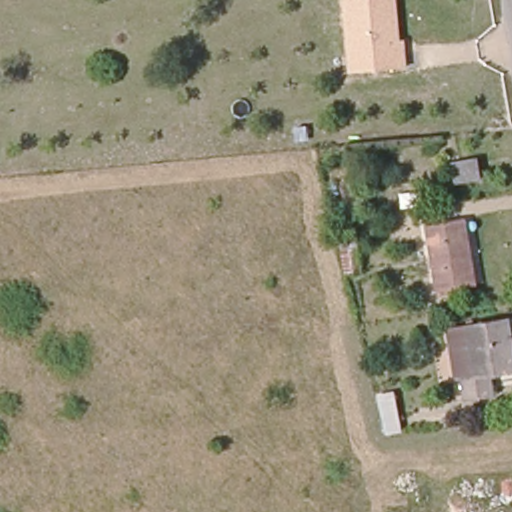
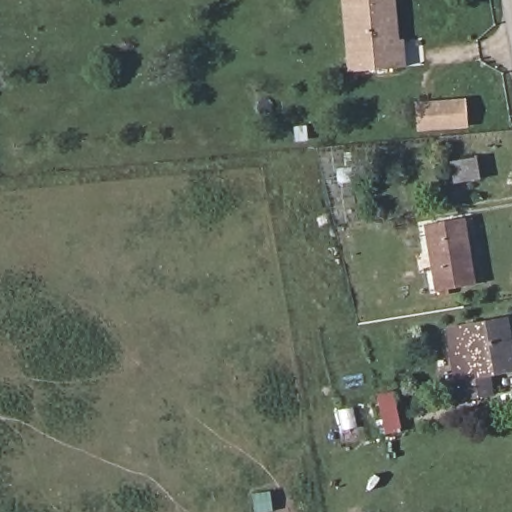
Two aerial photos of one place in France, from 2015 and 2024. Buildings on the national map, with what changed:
unchanged [(396,38),(403,37),(407,64),(346,72),(341,0),(394,0),(396,38)]
new [(418,131),(416,102),(467,97),(469,127),(418,131)]
unchanged [(480,158),(482,177),(461,181),(457,162),(480,158)]
unchanged [(457,221),(468,289),(440,293),(428,226),(457,221)]
unchanged [(502,321),(510,370),(483,374),(487,396),(455,399),(453,378),(466,375),(460,326),(502,321)]

